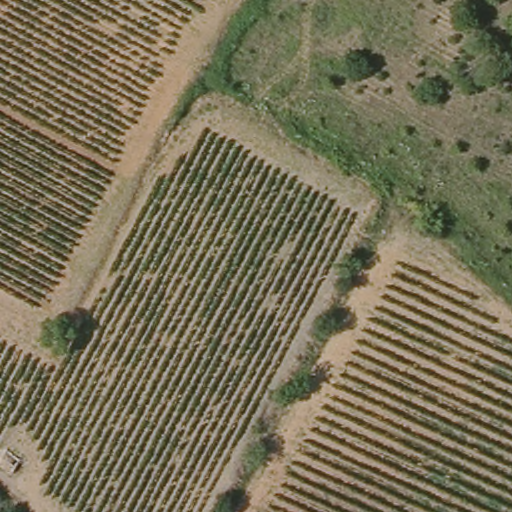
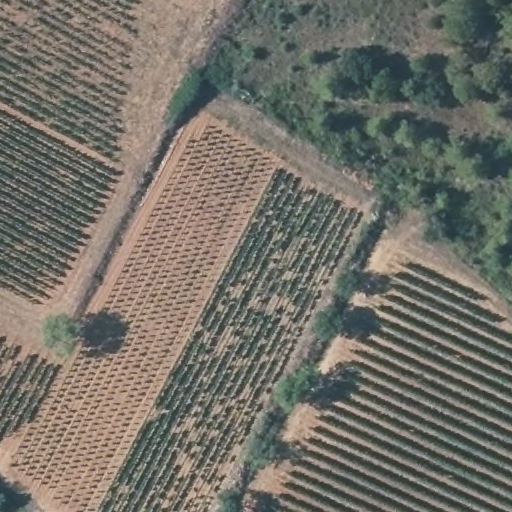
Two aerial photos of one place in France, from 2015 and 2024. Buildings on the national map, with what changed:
unchanged [(11,468),(0,462),(0,453),(5,444),(22,454),(11,468)]

